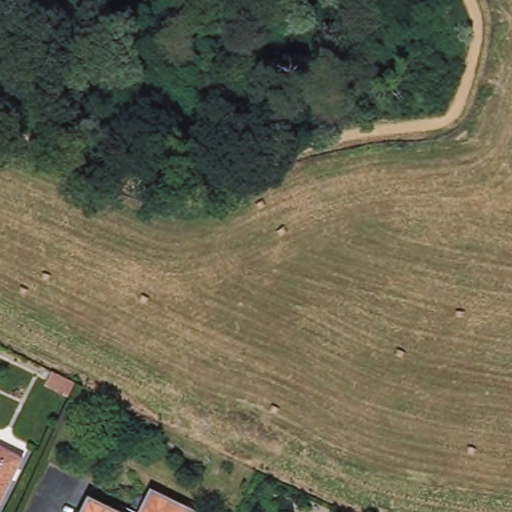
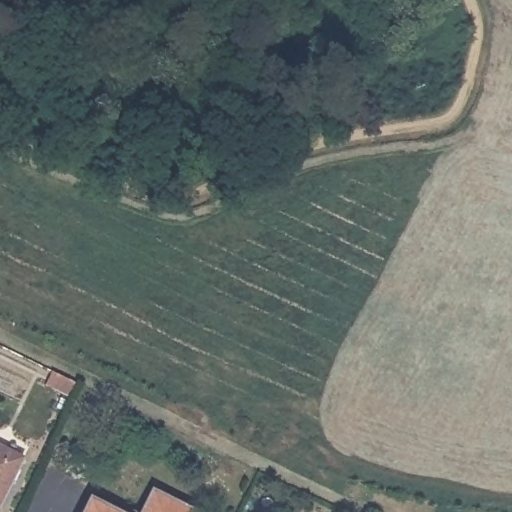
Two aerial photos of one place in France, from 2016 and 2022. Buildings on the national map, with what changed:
unchanged [(0,449),(26,462),(0,512),(0,449)]
unchanged [(187,512),(156,512),(163,500),(187,512)]
unchanged [(109,512),(88,512),(92,505),(109,512)]

